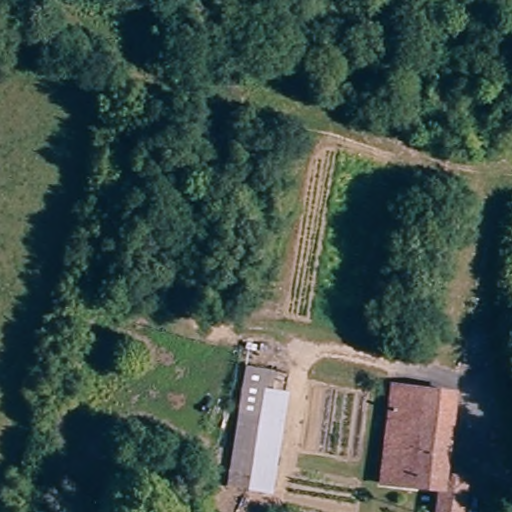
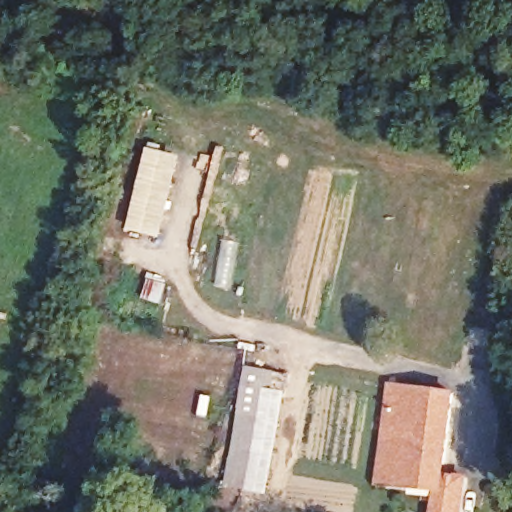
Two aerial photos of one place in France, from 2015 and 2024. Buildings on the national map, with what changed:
new [(149,149),(184,157),(164,238),(129,230),(149,149)]
unchanged [(252,476),(250,490),(230,486),(247,373),(268,377),(265,397),(252,476)]
unchanged [(467,480),(463,512),(437,512),(439,492),(382,485),(394,387),(454,395),(444,477),(467,480)]
unchanged [(267,478),(252,476),(265,397),(279,400),(267,478)]

